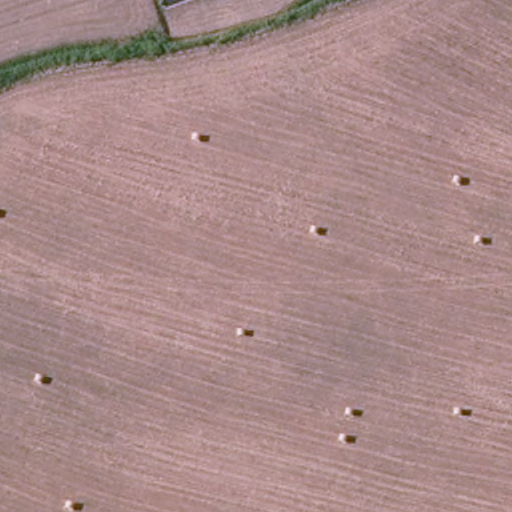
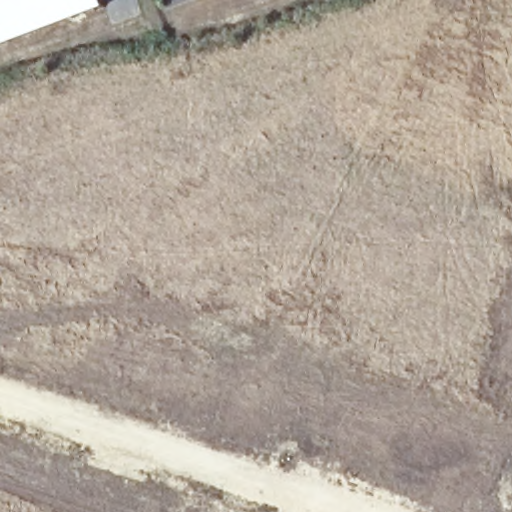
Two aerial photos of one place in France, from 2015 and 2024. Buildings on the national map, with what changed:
new [(103,0),(105,5),(0,45),(0,0),(103,0)]

